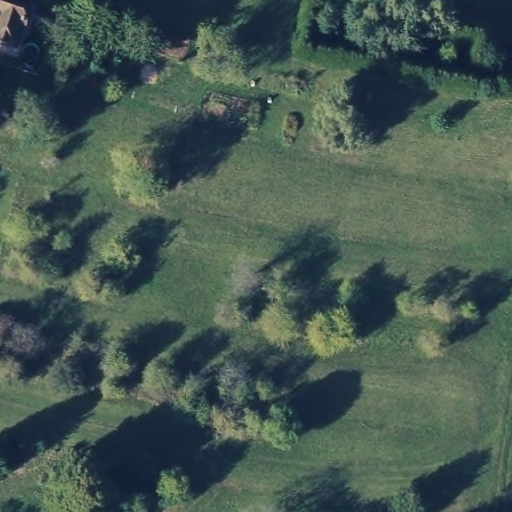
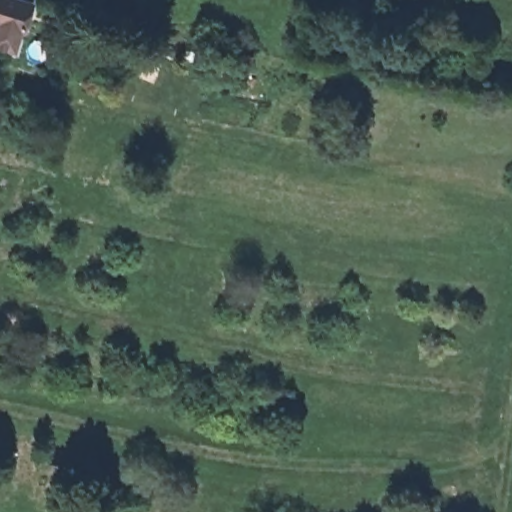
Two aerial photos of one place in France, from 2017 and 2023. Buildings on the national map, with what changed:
unchanged [(0,32),(0,26),(2,13),(0,12),(0,0),(32,0),(20,39),(0,32)]

